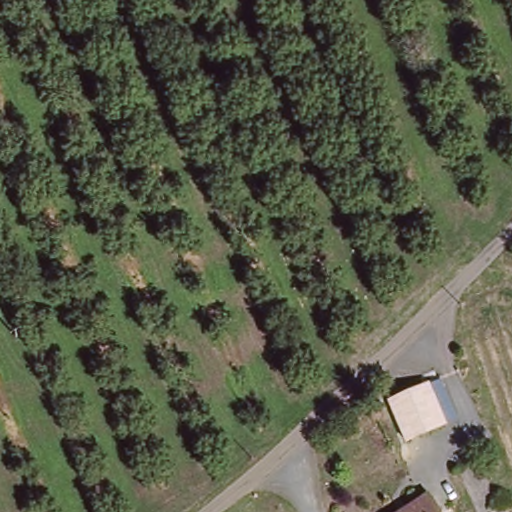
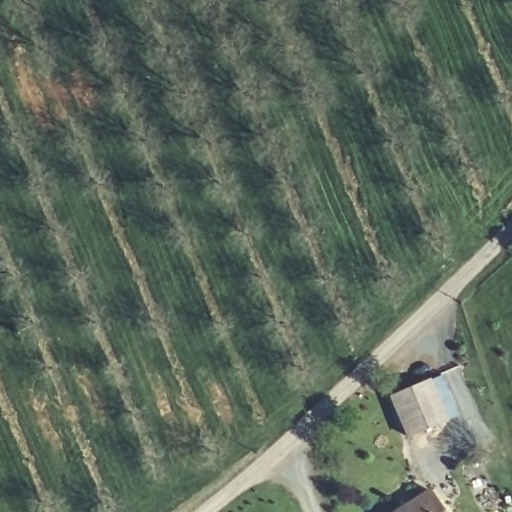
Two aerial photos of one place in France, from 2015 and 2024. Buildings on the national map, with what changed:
unchanged [(392,397),(431,381),(447,419),(408,435),(392,397)]
unchanged [(443,512),(404,512),(430,493),(443,512)]

